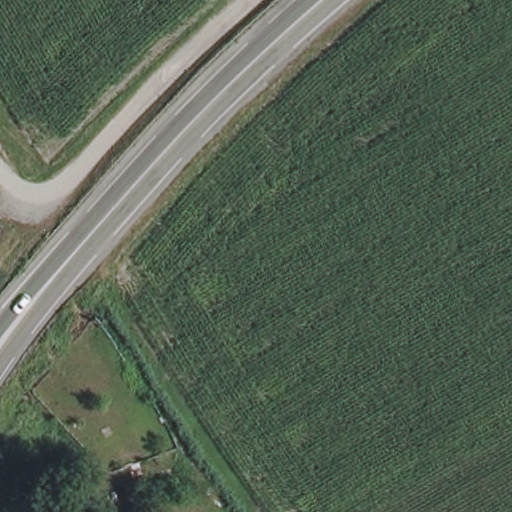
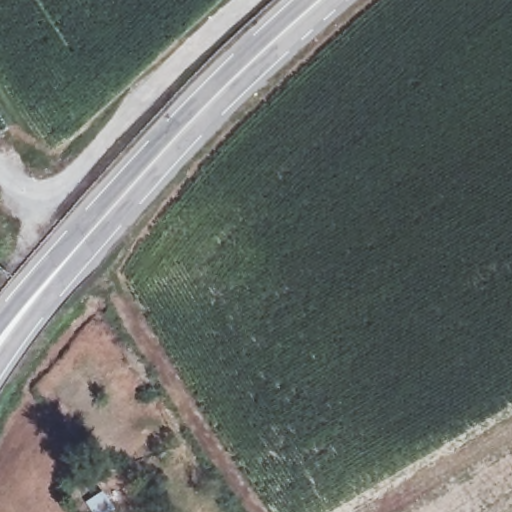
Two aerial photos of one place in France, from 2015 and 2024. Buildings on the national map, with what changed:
[]

